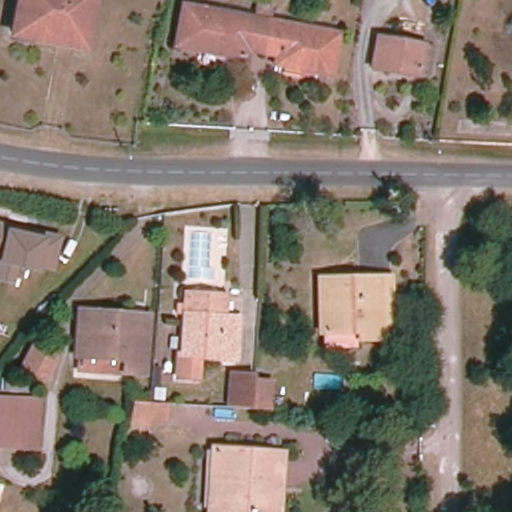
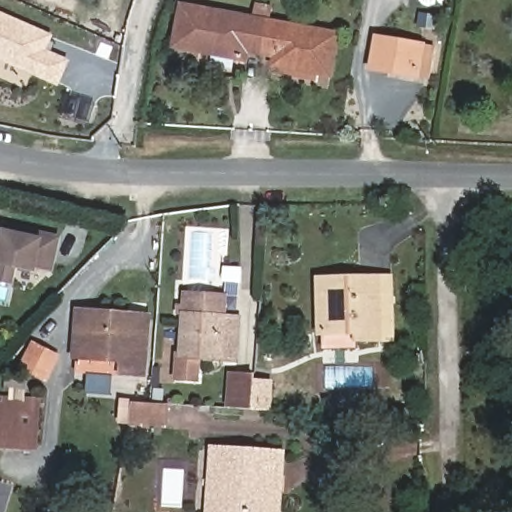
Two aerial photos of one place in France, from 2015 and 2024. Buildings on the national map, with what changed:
demolished [(39,37),(38,41),(11,36),(18,0),(92,0),(83,45),(39,37)]
unchanged [(247,50),(245,59),(176,46),(183,7),(268,22),(262,53),(247,50)]
new [(56,35),(49,50),(72,60),(60,86),(0,61),(0,11),(56,35)]
unchanged [(338,35),(330,75),(276,64),(277,56),(262,53),(268,22),(338,35)]
unchanged [(426,79),(414,77),(366,69),(372,37),(420,45),(431,47),(426,79)]
unchanged [(61,234),(53,272),(38,269),(37,273),(15,269),(13,285),(0,282),(0,220),(61,234)]
unchanged [(326,285),(361,284),(361,274),(382,273),(384,335),(363,335),(363,328),(328,328),(326,285)]
unchanged [(226,296),(225,318),(238,319),(236,360),(200,357),(199,377),(179,376),(180,356),(183,356),(185,314),(178,313),(178,306),(186,307),(187,294),(226,296)]
unchanged [(78,358),(81,318),(127,322),(128,315),(147,316),(142,375),(123,374),(77,370),(78,358)]
unchanged [(35,345),(58,357),(46,379),(23,367),(35,345)]
unchanged [(270,411),(253,410),(230,408),(232,376),(255,377),(255,381),(272,383),(270,411)]
unchanged [(27,392),(26,402),(6,400),(7,390),(27,392)]
unchanged [(127,433),(130,421),(133,402),(149,403),(168,404),(167,423),(148,422),(147,434),(127,433)]
unchanged [(39,412),(36,458),(0,457),(0,410),(39,412)]
unchanged [(283,453),(280,512),(209,512),(213,449),(283,453)]

